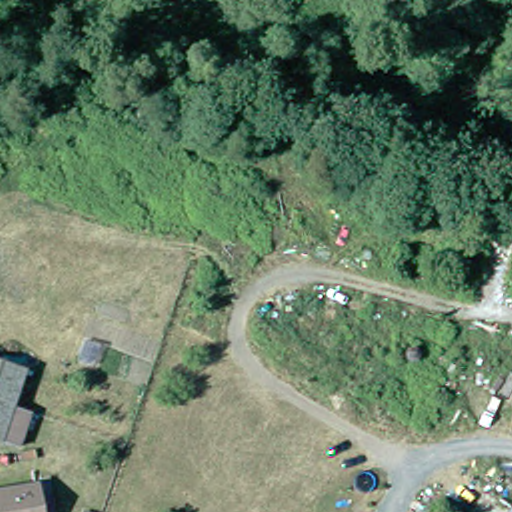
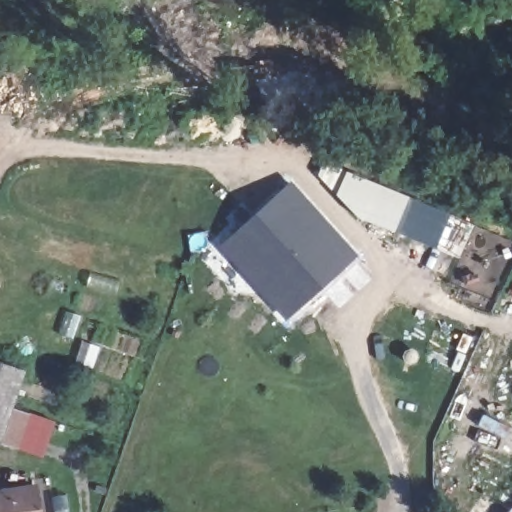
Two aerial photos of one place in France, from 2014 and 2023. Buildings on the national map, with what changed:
new [(334,165),(419,200),(405,234),(369,219),(328,179),(334,165)]
new [(224,247),(291,187),(356,257),(287,319),(224,247)]
unchanged [(26,366),(14,403),(0,398),(0,357),(26,366)]
unchanged [(14,403),(1,439),(0,439),(0,398),(14,403)]
unchanged [(39,487),(42,512),(0,512),(0,493),(39,487)]
unchanged [(489,512),(498,494),(512,501),(512,512),(489,512)]

